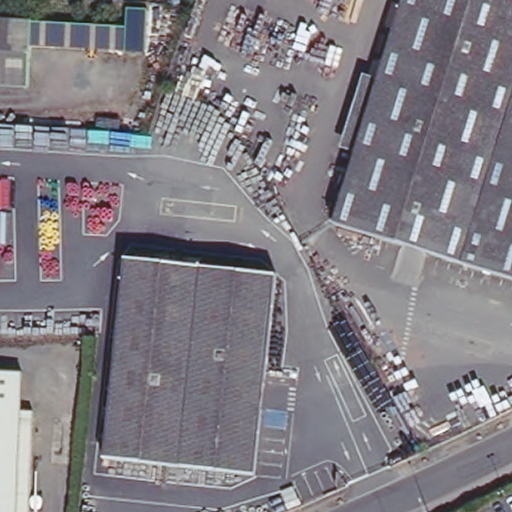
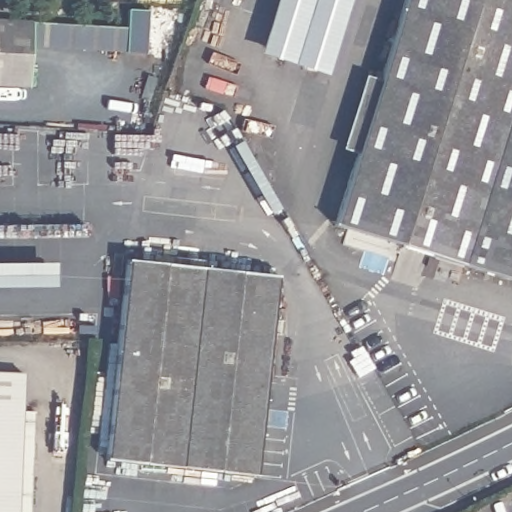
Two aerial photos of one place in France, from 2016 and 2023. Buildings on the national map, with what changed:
new [(328,85),(260,63),(279,0),(355,0),(328,85)]
unchanged [(345,187),(406,0),(512,0),(512,244),(345,187)]
unchanged [(127,29),(129,14),(151,14),(147,54),(32,47),(30,88),(0,86),(0,18),(31,19),(127,29)]
unchanged [(355,156),(337,150),(360,74),(380,79),(355,156)]
unchanged [(512,244),(512,281),(332,225),(345,187),(512,244)]
unchanged [(277,274),(257,473),(104,457),(126,254),(277,274)]
unchanged [(19,411),(34,411),(32,512),(0,512),(0,372),(20,372),(19,411)]

